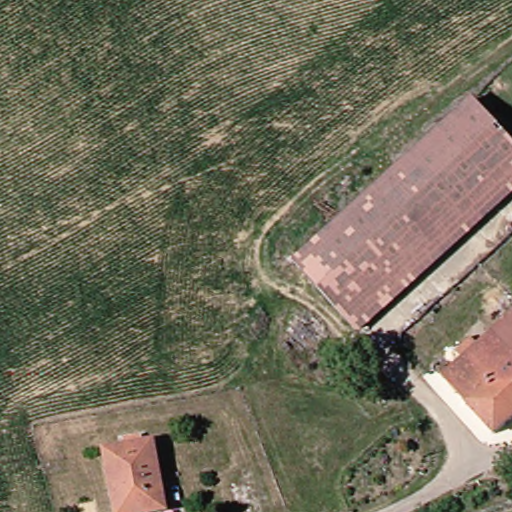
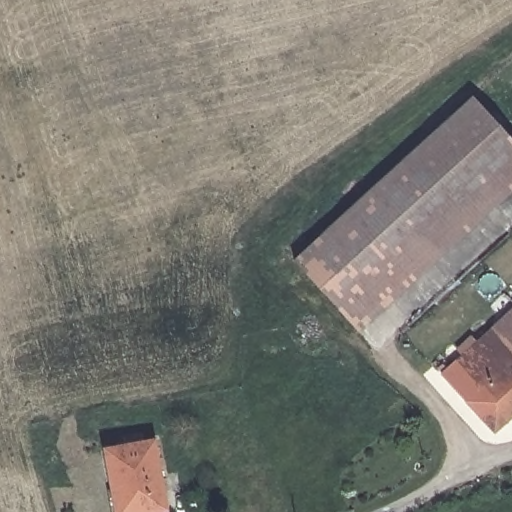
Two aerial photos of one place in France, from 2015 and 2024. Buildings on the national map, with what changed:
unchanged [(512,138),(512,180),(351,322),(302,265),(482,105),(512,138)]
unchanged [(444,373),(448,369),(441,361),(448,355),(456,363),(512,313),(512,420),(497,434),(444,373)]
unchanged [(157,441),(169,510),(154,512),(120,512),(109,447),(157,441)]

